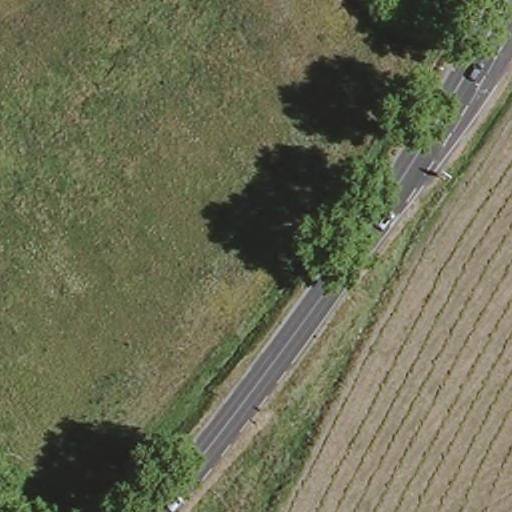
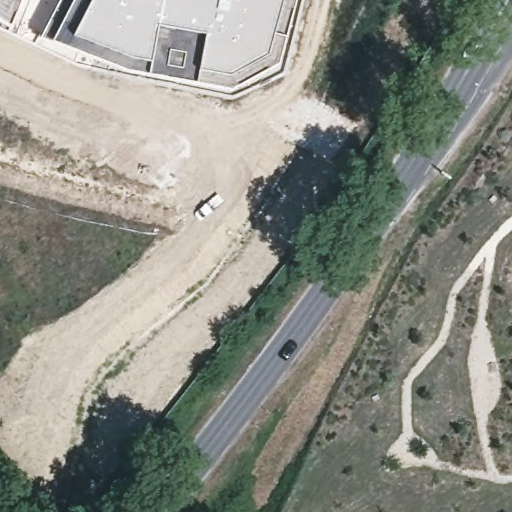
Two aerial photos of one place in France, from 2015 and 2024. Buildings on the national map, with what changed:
new [(0,0),(22,0),(10,30),(0,24),(0,0)]
new [(296,0),(279,67),(228,94),(124,74),(52,45),(39,41),(60,0),(296,0)]

